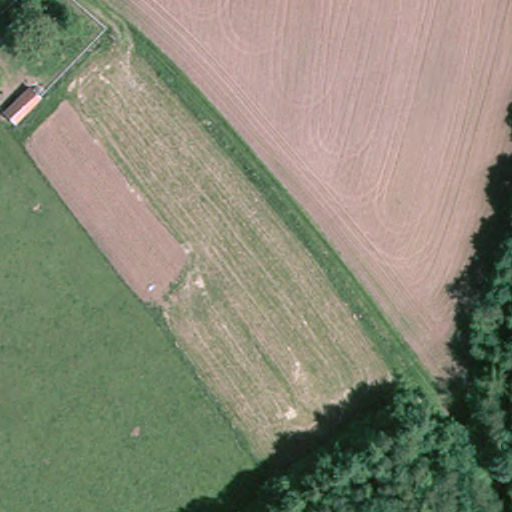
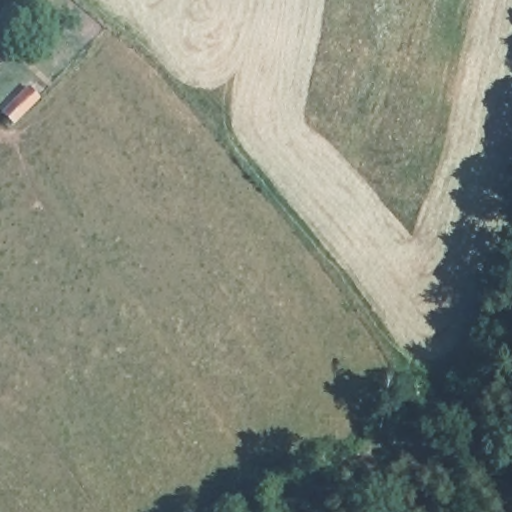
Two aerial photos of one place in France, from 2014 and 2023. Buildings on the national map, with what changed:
unchanged [(30,128),(20,118),(43,94),(53,103),(30,128)]

